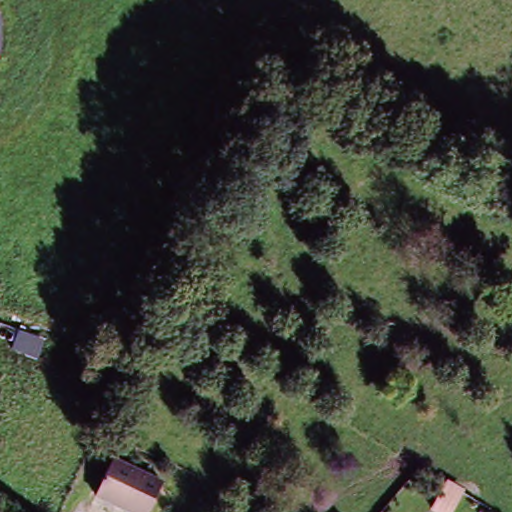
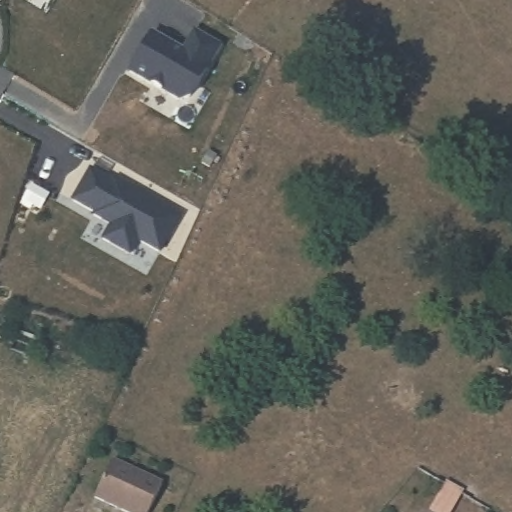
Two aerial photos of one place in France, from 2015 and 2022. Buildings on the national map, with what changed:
new [(183,48),(194,29),(222,46),(191,97),(178,102),(128,72),(153,31),(183,48)]
new [(113,182),(115,179),(181,216),(161,254),(139,242),(131,256),(102,239),(109,227),(92,217),(94,214),(70,200),(90,168),(113,182)]
unchanged [(33,359),(0,346),(0,336),(1,332),(39,345),(33,359)]
unchanged [(145,512),(115,512),(90,500),(106,465),(156,491),(145,512)]
unchanged [(451,512),(428,512),(444,492),(458,505),(451,512)]
unchanged [(70,512),(72,509),(80,512),(70,512)]

